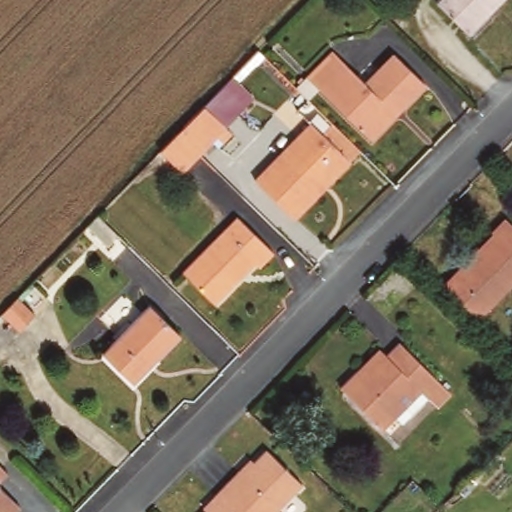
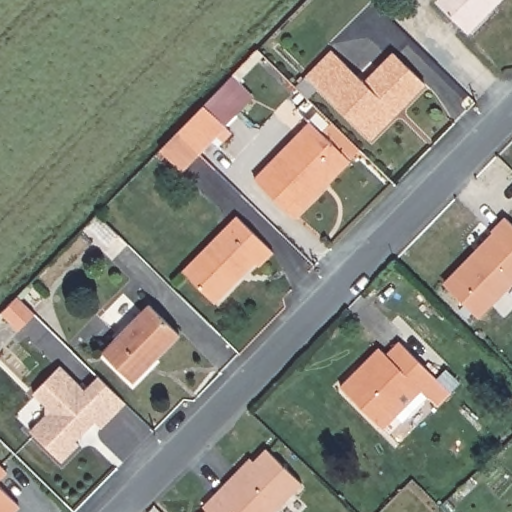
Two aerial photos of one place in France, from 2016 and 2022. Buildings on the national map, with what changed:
unchanged [(441,0),(497,0),(471,28),(441,0)]
unchanged [(310,74),(337,50),(369,83),(400,53),(428,80),(373,136),(310,74)]
unchanged [(170,143),(192,123),(214,99),(227,86),(251,108),(239,119),(214,145),(194,165),(170,143)]
unchanged [(317,127),(357,164),(301,218),(264,183),(317,127)]
unchanged [(279,253),(262,270),(257,267),(216,306),(188,273),(241,218),(279,253)]
unchanged [(446,284),(493,235),(489,232),(506,218),(512,224),(512,282),(477,317),(446,284)]
unchanged [(20,330),(1,311),(20,294),(38,313),(20,330)]
unchanged [(154,307),(184,336),(135,385),(105,355),(154,307)]
unchanged [(402,341),(453,391),(439,405),(429,396),(406,420),(399,414),(386,428),(343,386),(363,365),(382,347),(385,350),(389,354),(402,341)]
new [(79,444),(61,461),(30,429),(46,413),(45,405),(34,392),(61,365),(85,390),(99,376),(126,404),(101,428),(95,421),(82,434),(75,440),(79,444)]
unchanged [(272,448),(308,483),(288,504),(251,467),(272,448)]
unchanged [(0,483),(0,463),(11,473),(0,483)]
unchanged [(280,512),(211,512),(225,497),(220,493),(243,470),(245,473),(251,467),(288,504),(280,512)]
unchanged [(19,512),(0,512),(0,487),(21,510),(19,512)]

